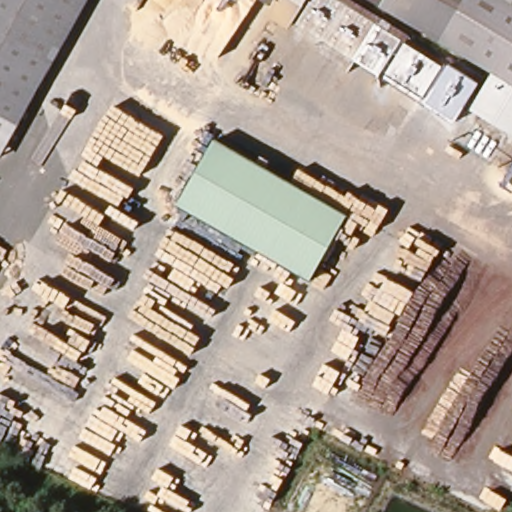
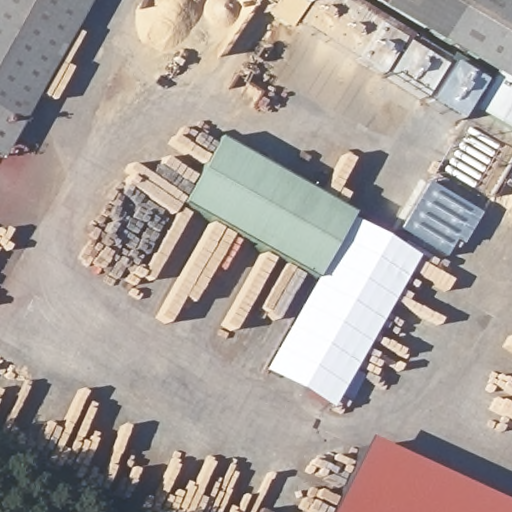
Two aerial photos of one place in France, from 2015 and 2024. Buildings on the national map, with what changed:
unchanged [(0,111),(0,0),(63,0),(83,13),(25,125),(0,111)]
unchanged [(91,0),(83,13),(63,0),(91,0)]
unchanged [(294,31),(268,16),(275,5),(266,0),(316,0),(298,26),(294,31)]
unchanged [(349,0),(390,24),(387,29),(441,66),(420,100),(298,26),(316,0),(349,0)]
unchanged [(368,0),(475,0),(448,45),(368,0)]
unchanged [(506,169),(457,141),(499,73),(448,45),(475,0),(512,0),(512,159),(506,169)]
new [(423,103),(450,62),(481,81),(456,123),(423,103)]
unchanged [(0,160),(0,111),(25,125),(0,160)]
unchanged [(348,216),(312,280),(179,207),(216,141),(348,216)]
new [(460,245),(452,241),(442,258),(396,229),(426,182),(479,212),(460,245)]
new [(327,412),(261,372),(312,280),(347,218),(415,258),(327,412)]
new [(366,442),(512,510),(512,512),(331,512),(366,442)]

